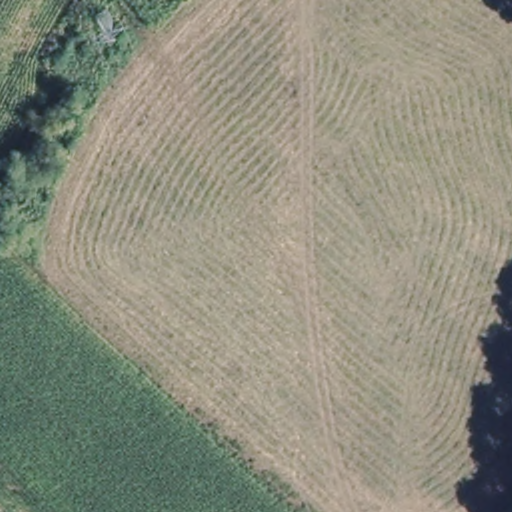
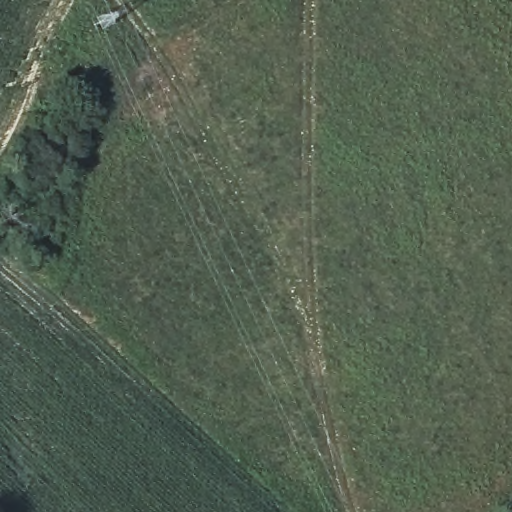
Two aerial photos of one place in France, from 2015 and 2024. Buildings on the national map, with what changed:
[]

